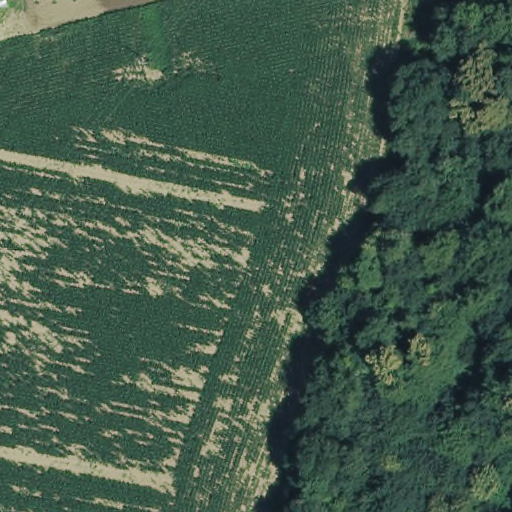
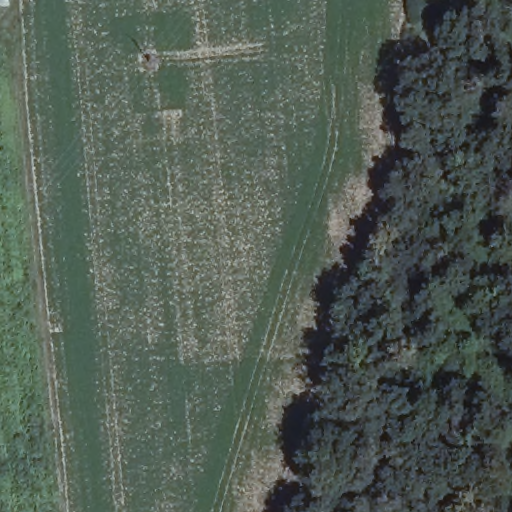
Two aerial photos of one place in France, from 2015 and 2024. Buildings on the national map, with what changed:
unchanged [(9,0),(10,7),(0,9),(0,0),(9,0)]

